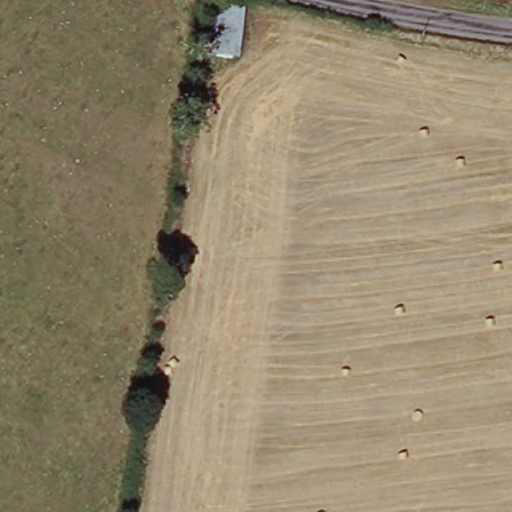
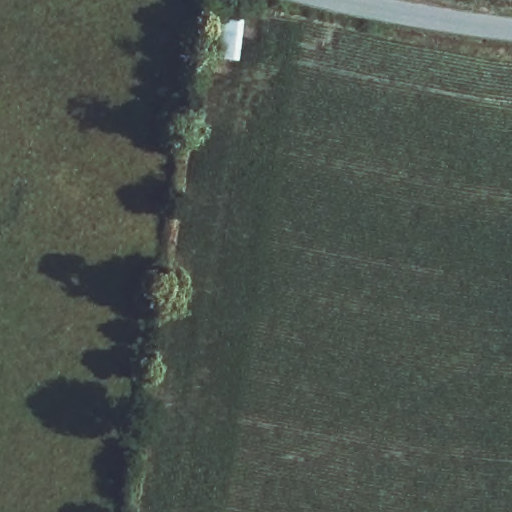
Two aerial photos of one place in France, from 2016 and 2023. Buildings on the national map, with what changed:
unchanged [(216,3),(241,7),(235,57),(210,54),(216,3)]

